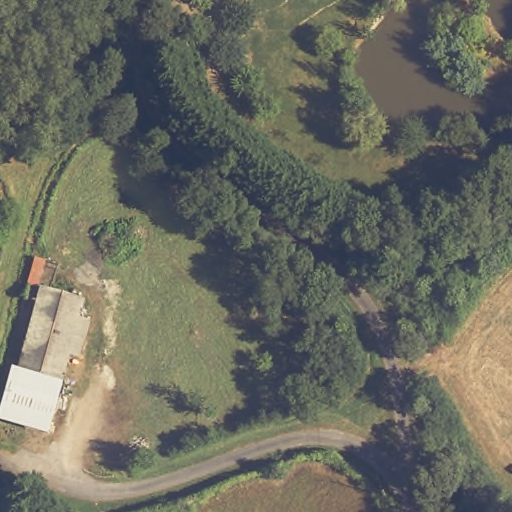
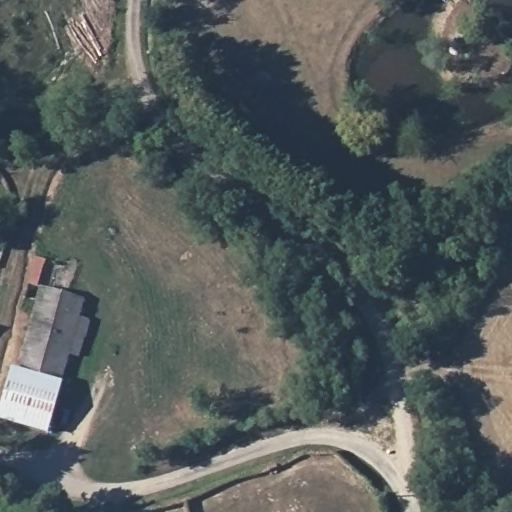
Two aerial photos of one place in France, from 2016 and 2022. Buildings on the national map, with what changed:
unchanged [(48,307),(32,304),(35,289),(91,301),(70,383),(32,376),(48,307)]
unchanged [(9,425),(19,372),(32,376),(70,383),(57,436),(9,425)]
unchanged [(93,507),(94,512),(64,512),(64,509),(93,507)]

